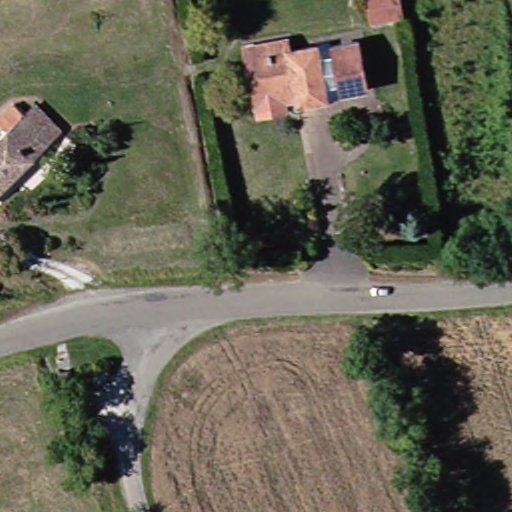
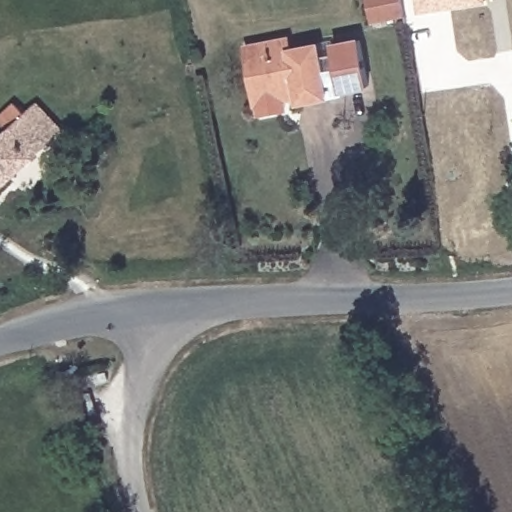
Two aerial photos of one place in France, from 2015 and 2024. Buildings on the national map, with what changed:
unchanged [(398,0),(400,13),(365,21),(361,0),(398,0)]
new [(419,14),(417,0),(489,0),(490,3),(419,14)]
unchanged [(336,90),(338,98),(317,101),(316,98),(296,102),(295,91),(283,93),(275,43),(282,41),(285,53),(307,47),(306,42),(326,37),(328,45),(354,38),(361,85),(336,90)]
unchanged [(283,93),(286,108),(261,115),(245,51),(275,43),(283,93)]
unchanged [(27,120),(50,148),(0,190),(0,143),(27,120)]

